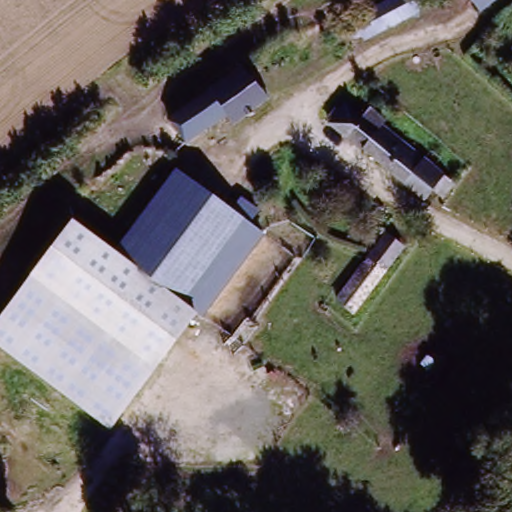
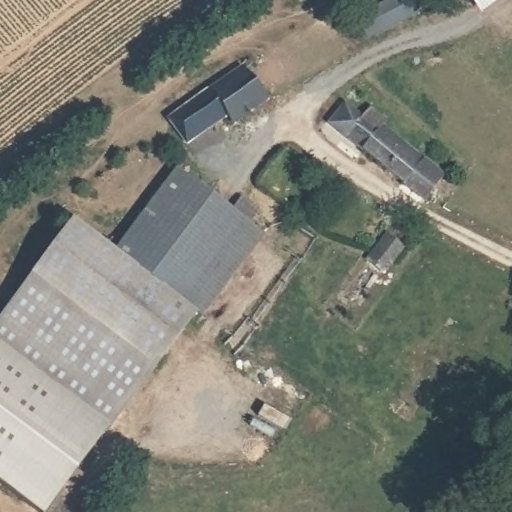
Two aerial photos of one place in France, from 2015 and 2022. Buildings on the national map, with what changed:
unchanged [(364,45),(356,24),(398,0),(412,0),(420,19),(364,45)]
unchanged [(468,0),(501,0),(481,15),(468,0)]
unchanged [(234,126),(227,118),(188,145),(172,118),(244,68),(269,95),(234,126)]
unchanged [(446,208),(432,195),(424,204),(327,126),(344,104),(361,115),(372,110),(457,188),(446,208)]
unchanged [(194,308),(122,252),(182,176),(252,232),(194,308)]
unchanged [(195,313),(156,367),(31,273),(71,220),(112,257),(195,313)]
demolished [(353,317),(334,301),(383,233),(405,248),(353,317)]
unchanged [(156,367),(110,429),(0,347),(0,318),(32,274),(156,367)]
new [(48,512),(35,512),(0,486),(0,347),(110,429),(48,512)]

